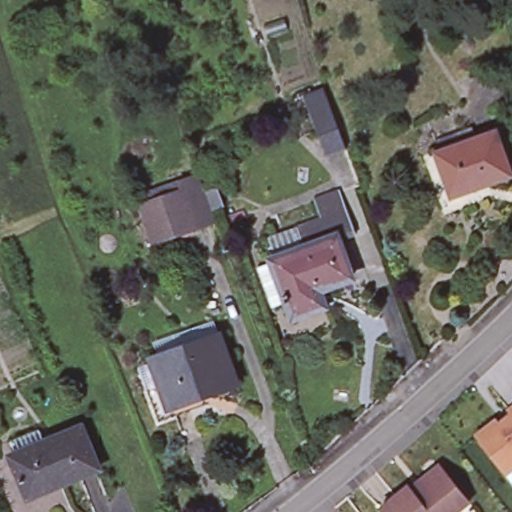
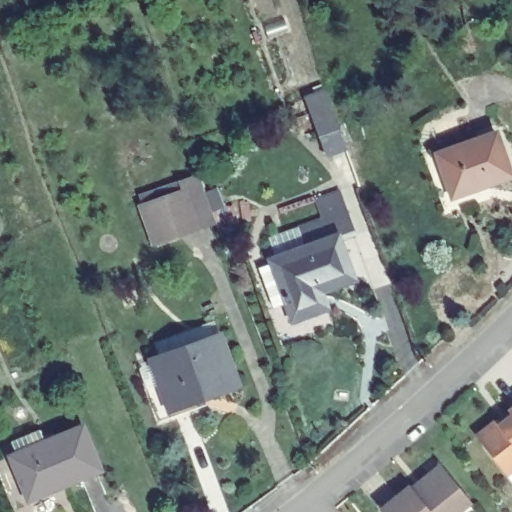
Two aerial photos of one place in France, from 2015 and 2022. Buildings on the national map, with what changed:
unchanged [(334,126),(291,136),(283,101),(324,91),(334,126)]
unchanged [(512,153),(512,175),(463,193),(448,151),(504,131),(512,153)]
unchanged [(138,190),(199,172),(218,221),(151,247),(138,190)]
unchanged [(296,235),(344,217),(355,247),(336,253),(333,243),(304,254),(296,235)]
unchanged [(304,254),(333,243),(336,253),(348,284),(315,296),(321,314),(293,324),(271,267),(304,254)]
unchanged [(151,353),(214,330),(233,380),(168,403),(151,353)]
unchanged [(481,430),(501,415),(504,418),(512,412),(512,469),(511,468),(481,430)]
unchanged [(85,425),(103,465),(33,495),(16,455),(85,425)]
unchanged [(477,496),(459,512),(395,512),(389,505),(418,481),(419,483),(436,470),(449,459),(477,496)]

